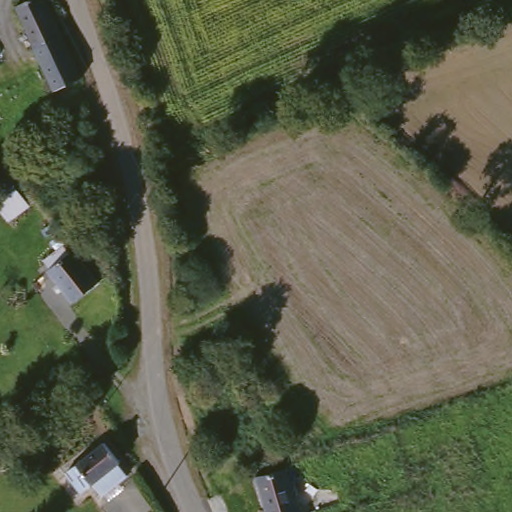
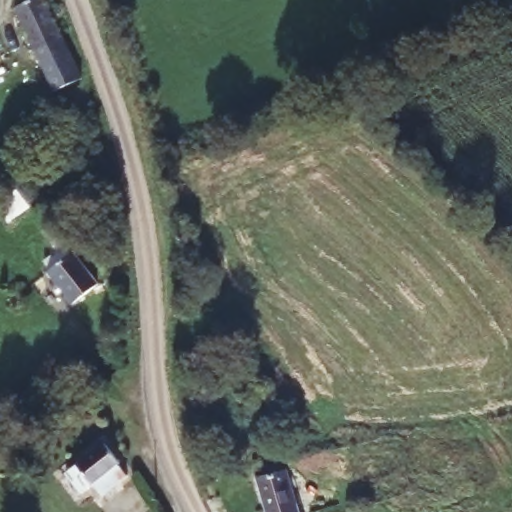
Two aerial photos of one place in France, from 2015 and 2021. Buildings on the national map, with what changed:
unchanged [(52,20),(46,23),(76,86),(49,101),(18,35),(36,26),(29,13),(47,5),(52,20)]
unchanged [(94,289),(87,294),(69,310),(43,279),(63,262),(69,257),(94,289)]
unchanged [(256,385),(246,389),(250,401),(211,420),(196,391),(235,372),(236,374),(251,367),(256,384),(256,385)]
unchanged [(279,376),(291,412),(268,419),(256,385),(279,376)]
unchanged [(60,479),(74,469),(101,449),(128,483),(101,502),(92,491),(79,502),(60,479)]
unchanged [(254,482),(256,481),(251,464),(270,459),(274,476),(283,474),(291,512),(261,512),(254,482)]

